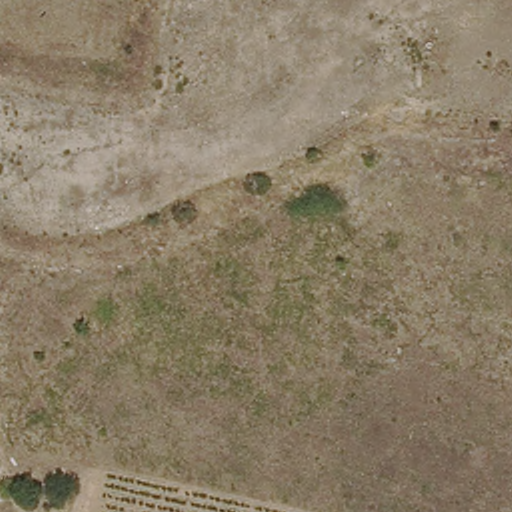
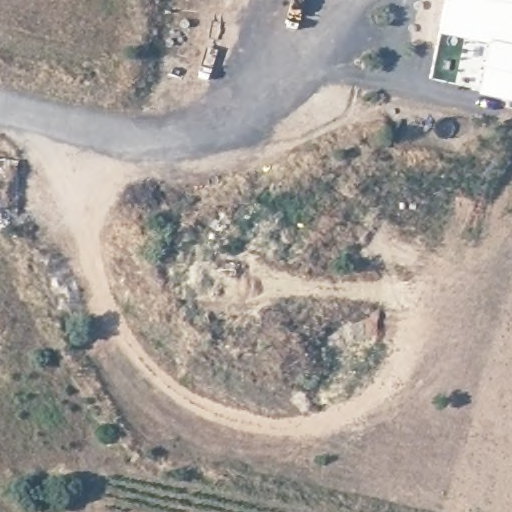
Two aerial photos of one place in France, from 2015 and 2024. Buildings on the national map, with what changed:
new [(479,89),(479,86),(431,77),(441,29),(447,0),(512,0),(512,96),(479,89)]

